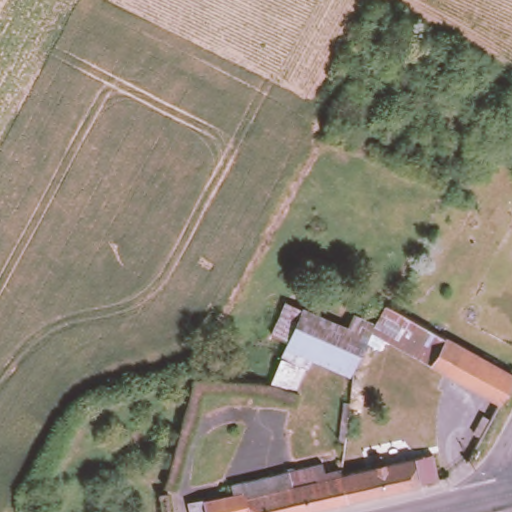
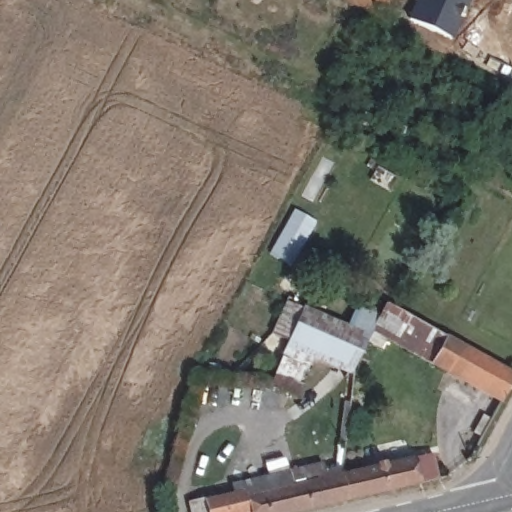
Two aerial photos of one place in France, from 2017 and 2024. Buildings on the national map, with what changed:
new [(466,9),(463,7),(458,18),(461,19),(453,39),(409,19),(417,0),(470,0),(466,9)]
unchanged [(503,402),(430,363),(389,336),(368,365),(364,415),(351,414),(357,375),(314,356),(300,392),(271,380),(290,336),(274,327),(285,297),(300,304),(347,325),(353,307),(377,314),(389,297),(443,326),(476,346),(512,365),(512,385),(503,402)]
unchanged [(193,512),(190,498),(236,485),(234,477),(326,456),(328,465),(350,458),(351,470),(437,450),(440,475),(290,512),(193,512)]

